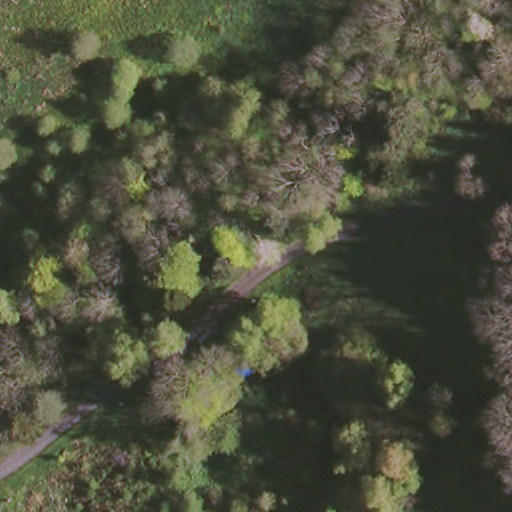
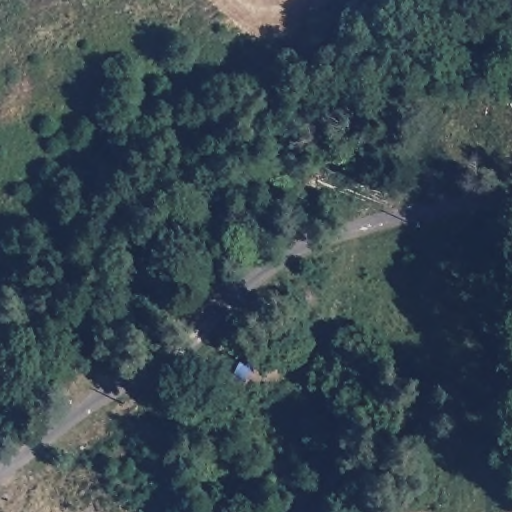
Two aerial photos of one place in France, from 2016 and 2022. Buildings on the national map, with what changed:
[]

